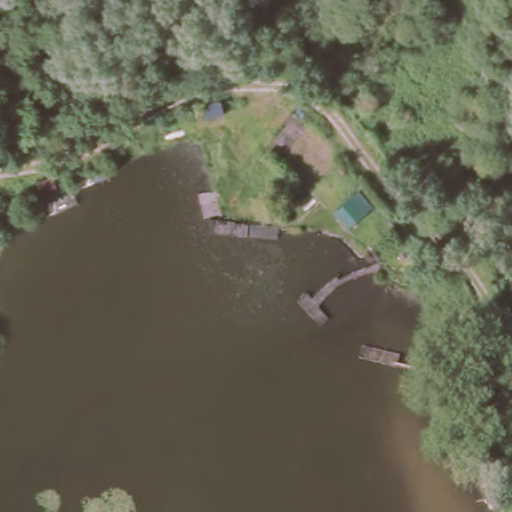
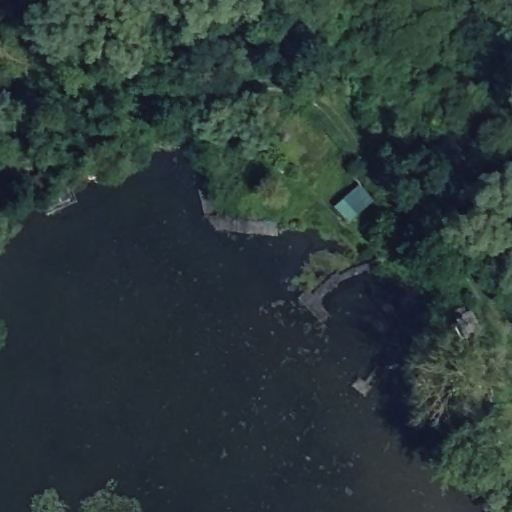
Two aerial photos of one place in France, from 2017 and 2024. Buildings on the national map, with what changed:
unchanged [(223,94),(228,111),(208,116),(204,97),(223,94)]
unchanged [(96,167),(96,178),(79,180),(75,169),(96,167)]
unchanged [(57,168),(62,180),(42,185),(32,172),(57,168)]
unchanged [(494,398),(503,426),(482,433),(471,404),(494,398)]

